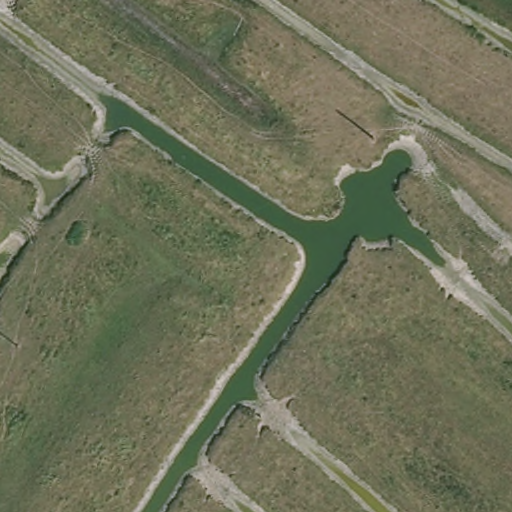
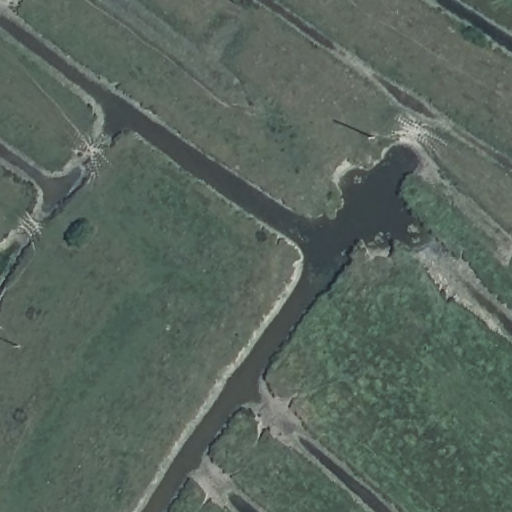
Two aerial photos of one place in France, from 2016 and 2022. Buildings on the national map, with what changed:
[]

